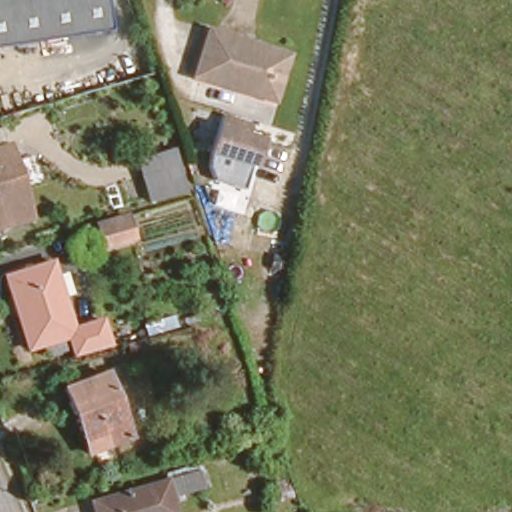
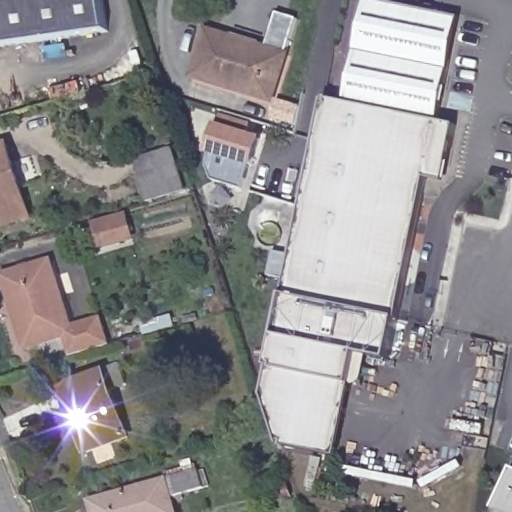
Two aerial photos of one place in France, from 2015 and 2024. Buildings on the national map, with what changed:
unchanged [(104,30),(0,46),(0,0),(100,0),(104,30)]
new [(447,70),(439,122),(456,125),(443,182),(425,178),(397,320),(389,361),(370,357),(363,378),(361,383),(356,385),(351,385),(337,456),(277,444),(262,397),(268,367),(283,295),(323,99),(343,103),(355,51),(365,0),(375,0),(459,18),(447,70)]
unchanged [(242,95),(188,77),(202,31),(278,57),(271,83),(264,103),(242,95)]
unchanged [(241,130),(257,136),(249,163),(207,148),(217,112),(244,120),(241,130)]
unchanged [(0,223),(0,146),(7,144),(22,192),(29,215),(0,223)]
unchanged [(181,196),(145,202),(132,155),(169,151),(181,196)]
unchanged [(97,250),(88,220),(126,209),(136,239),(97,250)]
unchanged [(67,323),(72,336),(63,338),(27,350),(3,280),(50,266),(67,323)]
unchanged [(72,336),(67,323),(99,317),(104,351),(69,362),(63,338),(72,336)]
unchanged [(96,375),(112,370),(120,392),(106,396),(121,442),(80,455),(58,394),(98,382),(96,375)]
unchanged [(201,488),(173,494),(180,512),(84,512),(80,501),(195,465),(201,488)]
new [(512,477),(512,512),(501,512),(497,510),(512,477)]

